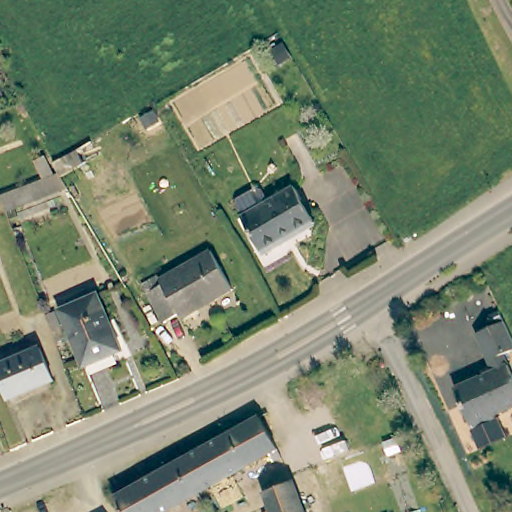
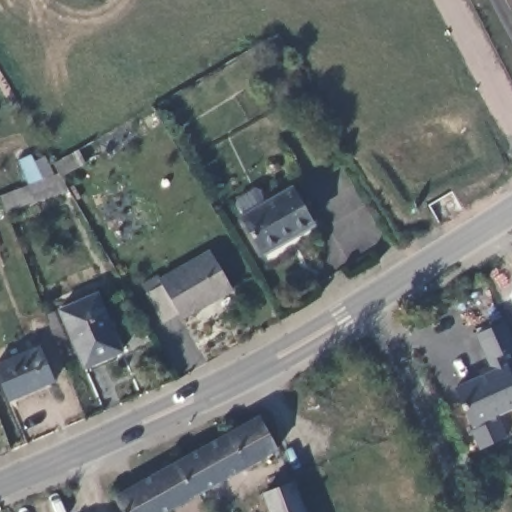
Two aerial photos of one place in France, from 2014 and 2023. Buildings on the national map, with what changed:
unchanged [(235,205),(236,199),(255,188),(260,190),(266,200),(291,186),(315,222),(287,239),(288,241),(264,256),(240,216),(241,215),(235,205)]
unchanged [(161,285),(158,280),(210,250),(233,290),(181,319),(179,314),(164,322),(146,293),(161,285)]
unchanged [(57,307),(95,292),(119,350),(81,365),(57,307)]
unchanged [(512,337),(512,350),(503,355),(512,375),(512,407),(495,416),(496,420),(475,429),(473,426),(471,427),(455,389),(492,371),(476,333),(505,321),(512,337)]
unchanged [(0,361),(35,346),(49,379),(6,397),(0,384),(0,361)]
unchanged [(258,417),(277,450),(162,512),(144,481),(258,417)]
unchanged [(162,512),(124,512),(115,498),(144,481),(162,512)]
unchanged [(304,512),(270,512),(263,493),(291,482),(304,512)]

